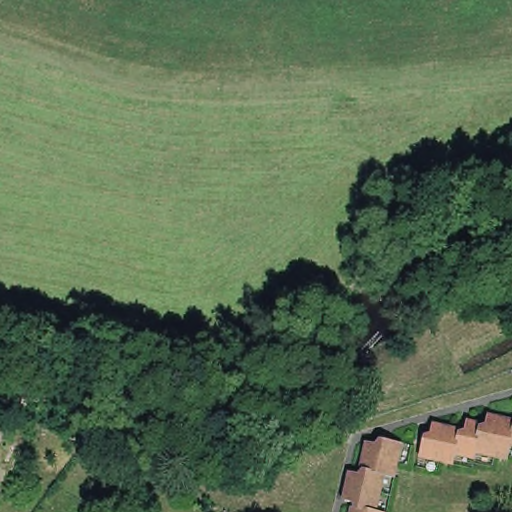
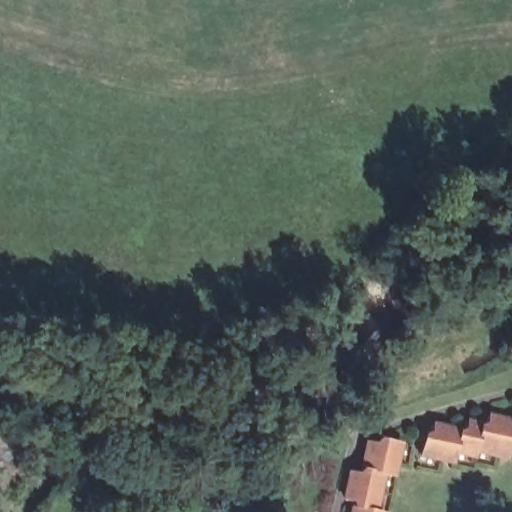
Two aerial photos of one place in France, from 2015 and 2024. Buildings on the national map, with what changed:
unchanged [(510,461),(477,455),(477,460),(457,456),(455,466),(422,457),(426,436),(432,436),(432,430),(462,436),(467,431),(468,425),(482,429),(488,424),(489,419),(512,424),(512,449),(510,461)]
unchanged [(347,504),(352,477),(358,478),(363,473),(370,445),(377,447),(382,443),(402,447),(394,481),(384,478),(377,512),(356,512),(353,506),(347,504)]

